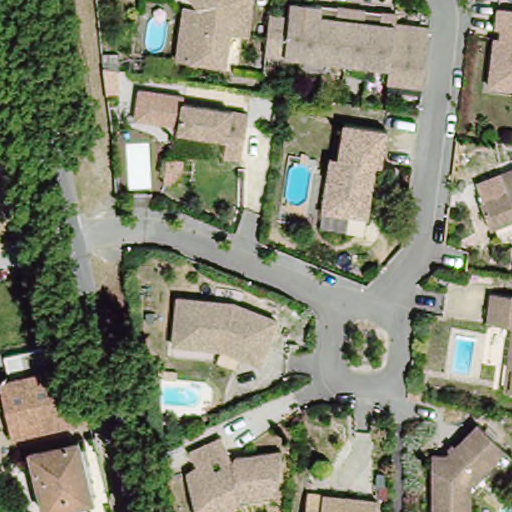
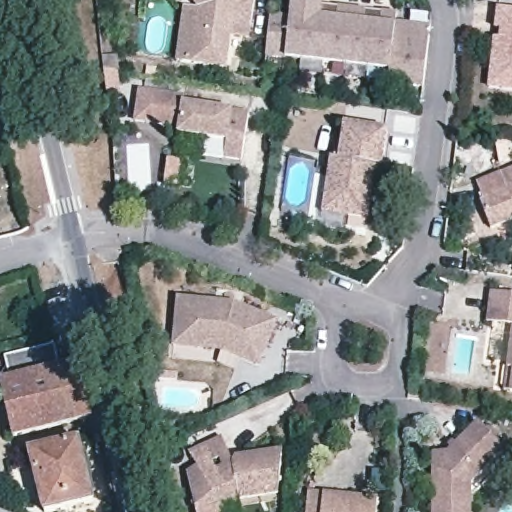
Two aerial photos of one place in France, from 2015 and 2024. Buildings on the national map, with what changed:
unchanged [(200,12),(191,0),(219,0),(219,1),(219,3),(227,2),(235,4),(235,0),(256,0),(249,40),(230,37),(225,71),(192,66),(177,64),(186,10),(200,12)]
unchanged [(292,0),(295,0),(311,2),(322,4),(338,6),(366,10),(381,12),(396,15),(395,24),(430,29),(430,30),(428,32),(427,35),(429,36),(422,88),(387,83),(389,70),(365,66),(344,64),(319,60),(297,56),(266,52),(271,12),(290,15),(292,0)]
unchanged [(488,86),(495,37),(500,39),(501,29),(496,28),(499,8),(512,10),(512,89),(488,86)]
unchanged [(183,126),(134,120),(139,90),(188,95),(187,102),(183,126)]
unchanged [(245,158),(227,155),(230,139),(182,131),(187,102),(252,112),(245,158)]
unchanged [(355,215),(328,210),(334,173),(338,155),(346,156),(353,121),(396,130),(389,165),(383,165),(380,181),(378,194),(375,210),(373,218),(355,215)]
unchanged [(481,195),(507,186),(502,168),(512,165),(512,215),(492,222),(481,195)]
unchanged [(177,331),(178,326),(183,285),(237,291),(278,310),(260,354),(242,346),(223,337),(177,331)]
unchanged [(488,320),(490,310),(493,290),(512,293),(512,324),(488,320)]
unchanged [(508,365),(512,335),(512,366),(508,365)]
unchanged [(18,436),(5,382),(82,362),(96,420),(18,436)]
unchanged [(512,377),(512,391),(510,390),(512,377)]
unchanged [(436,383),(433,397),(416,395),(418,380),(436,383)]
unchanged [(443,447),(470,426),(477,420),(502,449),(489,460),(468,478),(466,512),(428,512),(430,446),(443,447)]
unchanged [(194,465),(189,443),(221,430),(224,444),(206,451),(213,465),(203,472),(215,512),(197,512),(184,468),(194,465)]
unchanged [(213,465),(206,451),(224,444),(239,438),(246,455),(229,462),(232,470),(240,467),(242,472),(249,470),(248,465),(251,458),(294,440),(285,482),(246,485),(245,490),(230,495),(227,512),(215,512),(203,472),(213,465)]
unchanged [(78,443),(94,505),(59,512),(43,512),(29,454),(78,443)]
unchanged [(379,507),(378,512),(321,512),(323,500),(379,507)]
unchanged [(317,512),(306,512),(306,510),(317,512)]

